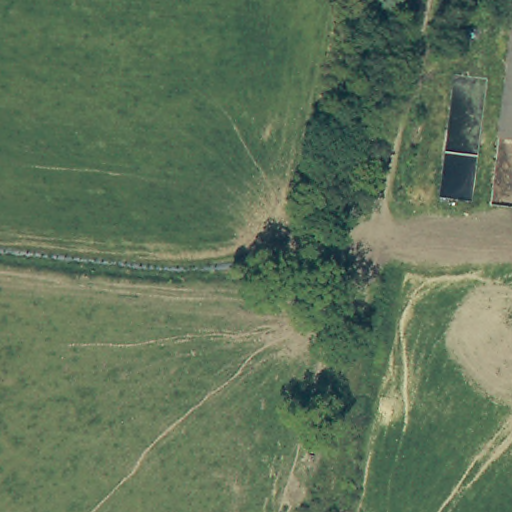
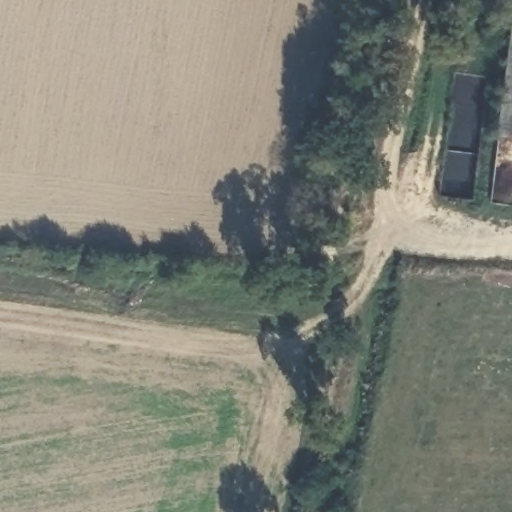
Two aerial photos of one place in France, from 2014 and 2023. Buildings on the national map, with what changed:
unchanged [(512,139),(487,135),(508,9),(512,10),(512,139)]

